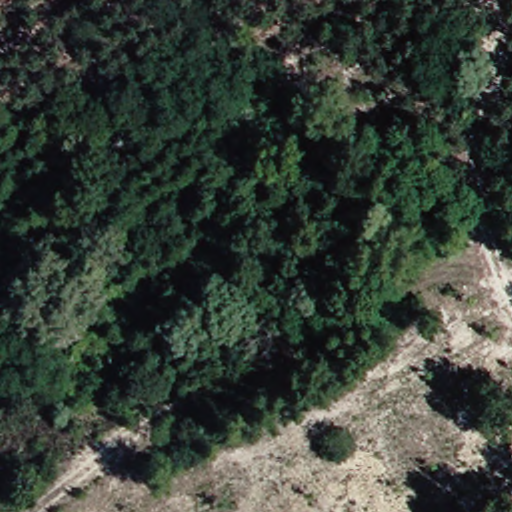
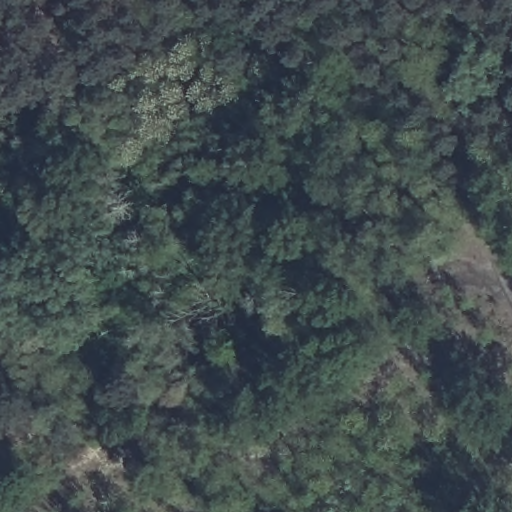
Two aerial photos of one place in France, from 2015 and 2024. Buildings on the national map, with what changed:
[]

